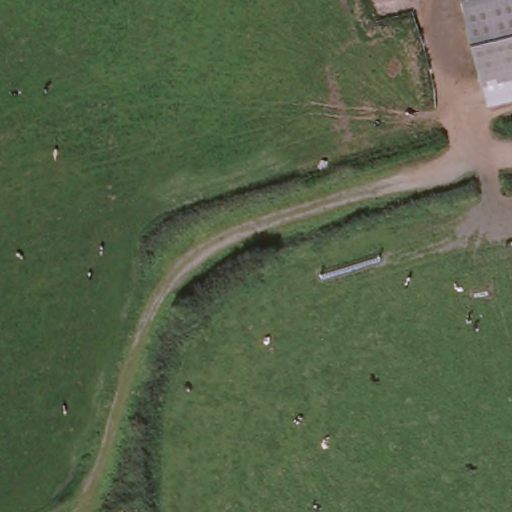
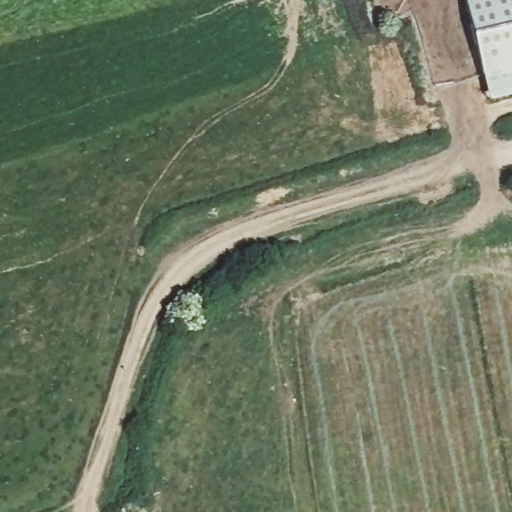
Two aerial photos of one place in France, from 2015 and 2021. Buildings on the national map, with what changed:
unchanged [(512,0),(512,69),(484,76),(466,0),(512,0)]

